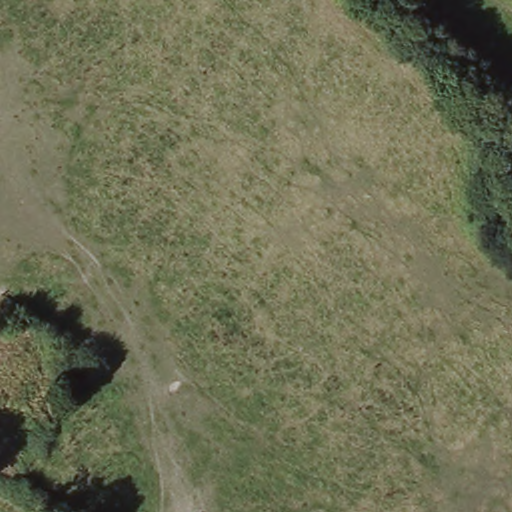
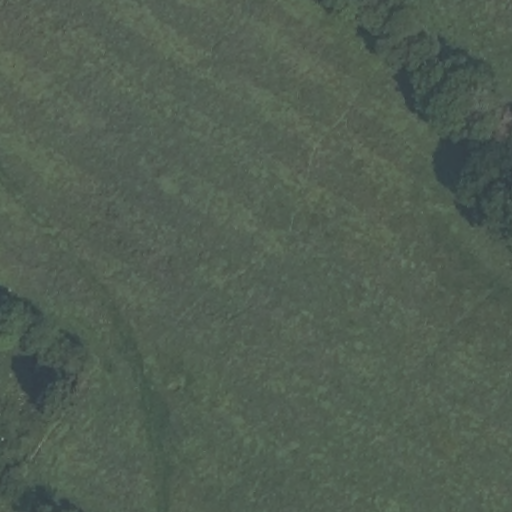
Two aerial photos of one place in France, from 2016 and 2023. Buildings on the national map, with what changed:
unchanged [(509,0),(512,0),(512,5),(509,0)]

